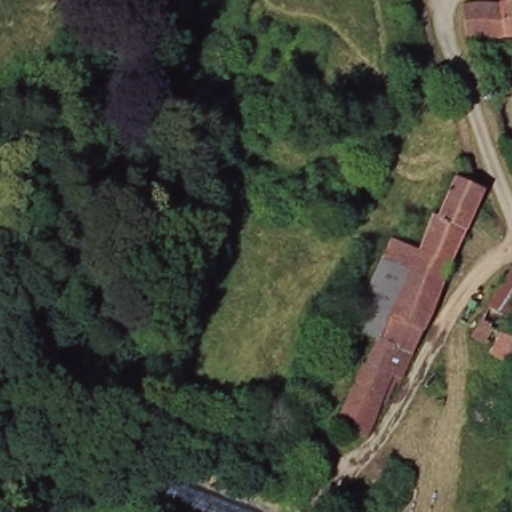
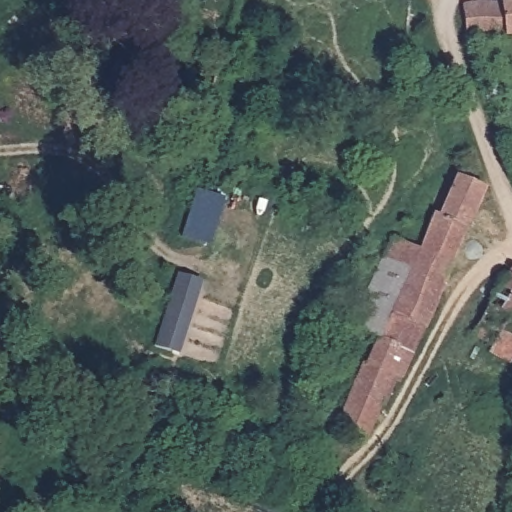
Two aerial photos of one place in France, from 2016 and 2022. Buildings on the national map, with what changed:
unchanged [(462,6),(469,0),(512,0),(512,35),(462,35),(462,13),(462,6)]
unchanged [(450,270),(429,317),(414,350),(402,377),(398,377),(388,401),(382,402),(367,437),(361,437),(357,445),(339,440),(344,429),(337,424),(362,364),(368,363),(375,342),(349,329),(380,266),(393,239),(418,249),(431,221),(434,215),(443,217),(459,178),(471,183),(486,190),(450,270)]
new [(180,238),(194,193),(222,202),(208,247),(180,238)]
unchanged [(21,197),(18,208),(7,206),(9,196),(21,197)]
unchanged [(488,309),(512,270),(512,316),(511,319),(488,309)]
new [(154,348),(176,274),(201,283),(179,355),(154,348)]
unchanged [(491,348),(477,340),(473,338),(488,309),(511,319),(512,319),(512,361),(510,365),(489,355),(491,348)]
unchanged [(55,506),(53,512),(30,512),(33,502),(55,506)]

